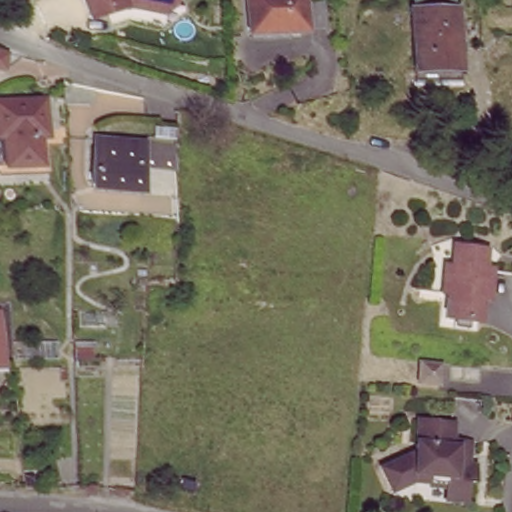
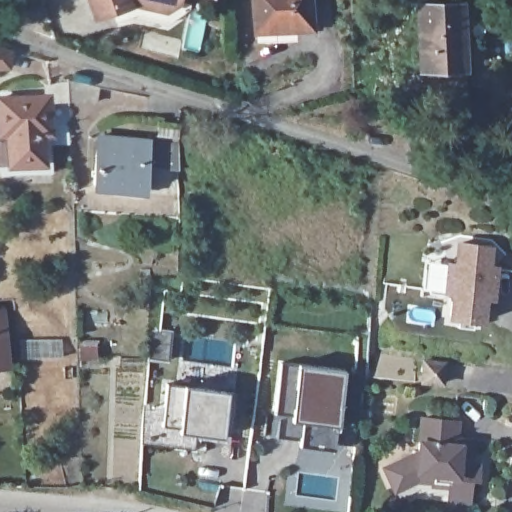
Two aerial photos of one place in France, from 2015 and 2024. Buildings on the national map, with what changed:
unchanged [(93,0),(121,0),(96,8),(93,0)]
unchanged [(167,3),(154,0),(171,0),(167,3)]
unchanged [(298,20),(298,29),(248,31),(246,0),(321,0),(321,20),(298,20)]
unchanged [(463,5),(463,66),(424,65),(424,4),(463,5)]
unchanged [(0,65),(0,44),(10,48),(5,65),(0,65)]
unchanged [(95,101),(68,100),(68,81),(95,86),(95,101)]
unchanged [(53,162),(0,164),(0,97),(50,96),(53,162)]
unchanged [(180,135),(158,133),(159,125),(181,127),(180,135)]
unchanged [(129,184),(113,183),(112,185),(94,184),(99,137),(148,142),(145,177),(144,186),(129,184)]
unchanged [(298,148),(298,159),(285,158),(286,147),(298,148)]
unchanged [(454,320),(454,313),(446,312),(449,286),(442,286),(444,270),(445,259),(453,260),(456,239),(489,243),(487,262),(493,263),(491,291),(482,291),(479,315),(470,314),(470,321),(454,320)]
unchanged [(150,269),(150,276),(141,276),(141,269),(150,269)]
unchanged [(5,364),(0,364),(0,311),(1,311),(5,364)]
unchanged [(62,338),(62,356),(19,357),(19,339),(62,338)]
unchanged [(95,343),(95,358),(80,358),(80,342),(95,343)]
unchanged [(145,365),(122,366),(122,358),(145,358),(145,365)]
unchanged [(444,363),(442,383),(423,382),(425,361),(444,363)]
new [(344,371),(335,444),(279,439),(281,414),(274,413),(282,363),(344,371)]
new [(235,393),(231,434),(163,426),(167,385),(235,393)]
unchanged [(395,489),(385,467),(418,451),(420,418),(455,421),(455,435),(473,437),(472,451),(460,451),(459,461),(479,462),(477,480),(470,480),(468,498),(450,497),(450,486),(434,484),(434,480),(415,478),(395,489)]

